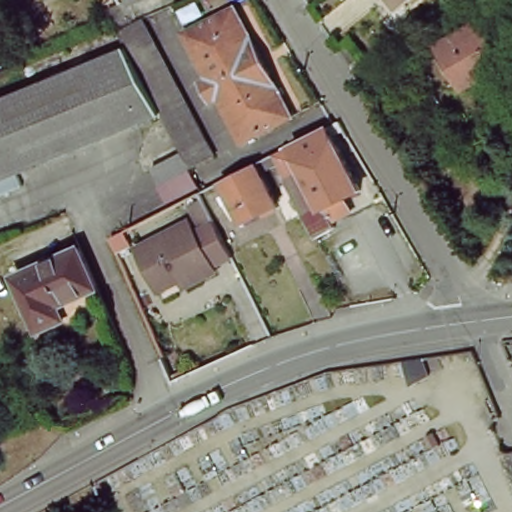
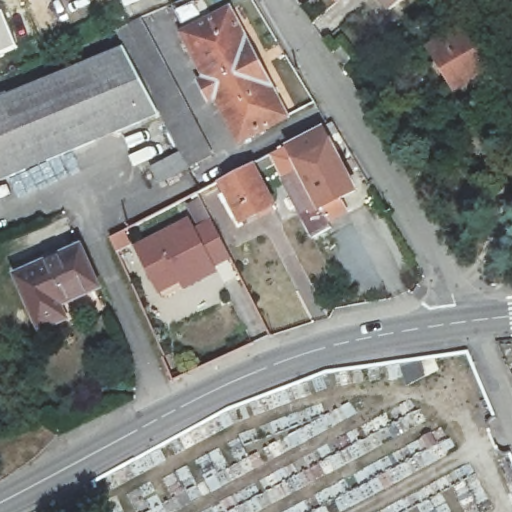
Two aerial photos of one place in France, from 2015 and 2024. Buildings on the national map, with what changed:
unchanged [(379,0),(404,0),(390,12),(379,0)]
unchanged [(229,2),(284,110),(237,135),(213,87),(207,90),(198,74),(205,70),(183,26),(229,2)]
new [(17,47),(0,55),(0,8),(2,11),(17,47)]
unchanged [(150,163),(178,148),(160,110),(145,79),(127,41),(119,23),(124,21),(130,19),(143,14),(208,152),(185,164),(158,180),(150,163)]
unchanged [(497,60),(457,85),(450,74),(439,80),(428,62),(437,55),(430,44),(470,20),(497,60)]
unchanged [(160,110),(2,174),(0,169),(0,92),(127,41),(145,79),(160,110)]
unchanged [(278,146),(293,139),(318,126),(327,146),(329,145),(350,190),(334,198),(341,211),(322,222),(324,227),(309,237),(304,228),(272,161),(267,152),(278,146)]
unchanged [(272,161),(253,171),(270,204),(238,220),(216,177),(267,152),(272,161)]
unchanged [(215,257),(197,266),(201,273),(186,281),(183,275),(167,283),(162,273),(140,284),(123,249),(176,221),(180,230),(185,228),(175,207),(186,201),(192,212),(197,222),(204,236),(215,257)]
unchanged [(102,254),(95,239),(109,232),(116,247),(102,254)]
unchanged [(99,283),(60,300),(66,315),(41,325),(16,270),(81,242),(99,283)]

